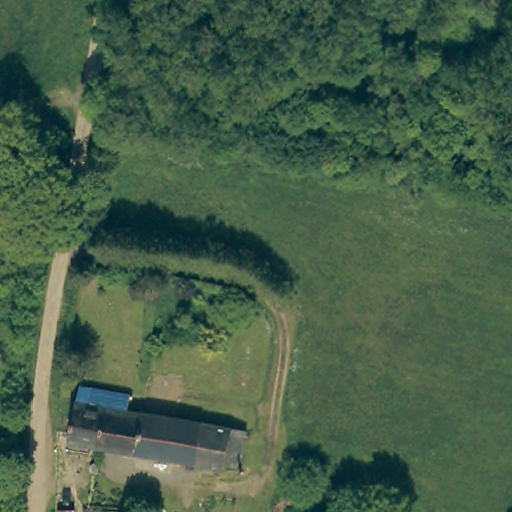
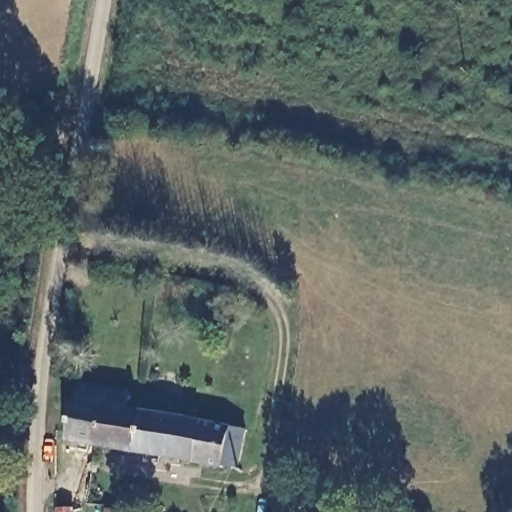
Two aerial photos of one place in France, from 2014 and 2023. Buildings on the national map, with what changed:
unchanged [(61,351),(74,353),(76,372),(62,369),(57,366),(61,351)]
unchanged [(237,461),(222,459),(222,464),(93,441),(101,402),(74,398),(77,379),(125,388),(122,404),(140,408),(212,421),(243,427),(237,461)]
unchanged [(101,402),(93,441),(62,434),(69,397),(74,398),(101,402)]

